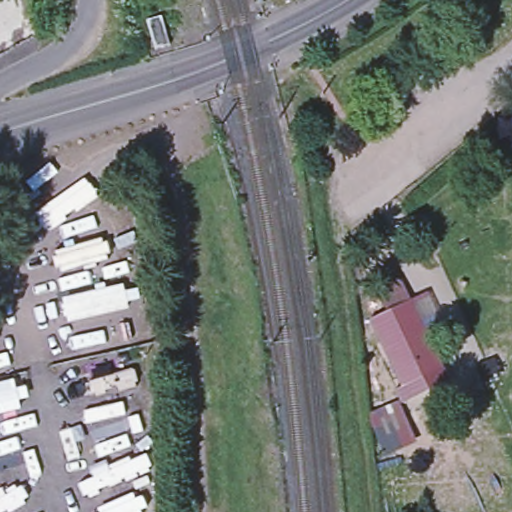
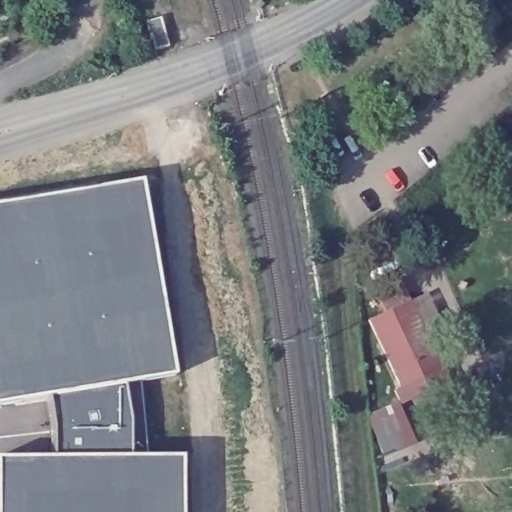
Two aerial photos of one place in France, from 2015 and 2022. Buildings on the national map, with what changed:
demolished [(56,0),(62,9),(65,15),(37,31),(0,52),(0,0),(56,0)]
unchanged [(150,26),(162,22),(172,52),(159,56),(150,26)]
new [(138,180),(178,374),(142,382),(147,456),(181,455),(181,512),(0,512),(0,459),(49,456),(52,417),(48,396),(0,402),(0,203),(138,180)]
unchanged [(405,393),(373,325),(413,306),(430,298),(445,330),(429,338),(445,374),(405,393)]
unchanged [(385,457),(370,411),(400,400),(414,446),(385,457)]

